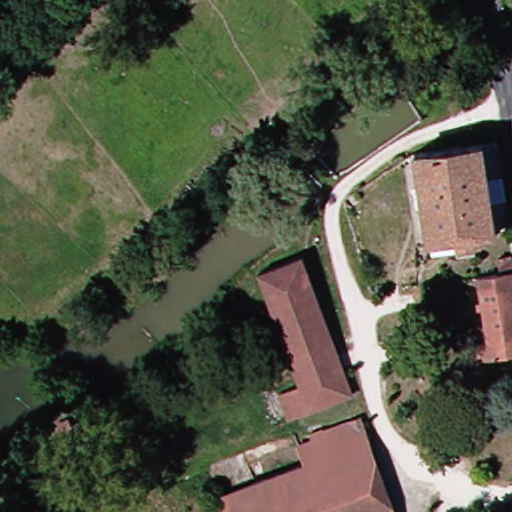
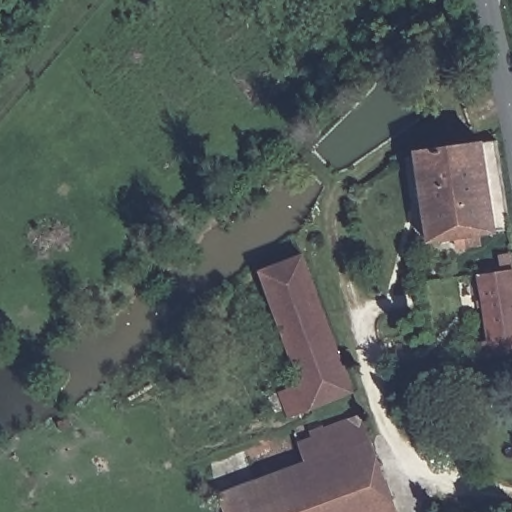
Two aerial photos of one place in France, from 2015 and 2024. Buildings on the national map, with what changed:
unchanged [(413,55),(390,69),(380,52),(403,38),(413,55)]
unchanged [(483,235),(484,245),(462,248),(459,237),(434,242),(419,152),(486,142),(500,232),(483,235)]
unchanged [(312,387),(271,272),(312,257),(364,392),(301,416),(292,393),(312,387)]
unchanged [(512,261),(512,360),(479,367),(476,348),(494,345),(484,281),(507,278),(503,262),(512,261)]
unchanged [(133,405),(128,396),(156,378),(163,388),(133,405)]
unchanged [(365,512),(237,512),(231,495),(318,462),(310,443),(324,438),(322,432),(334,428),(336,430),(370,417),(379,439),(342,453),(365,512)]
unchanged [(342,453),(379,439),(407,512),(365,512),(342,453)]

